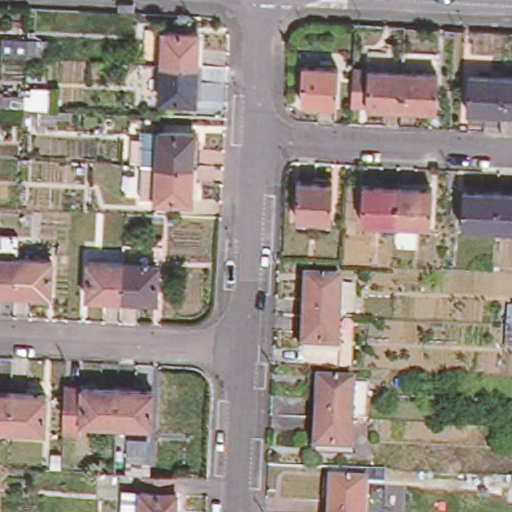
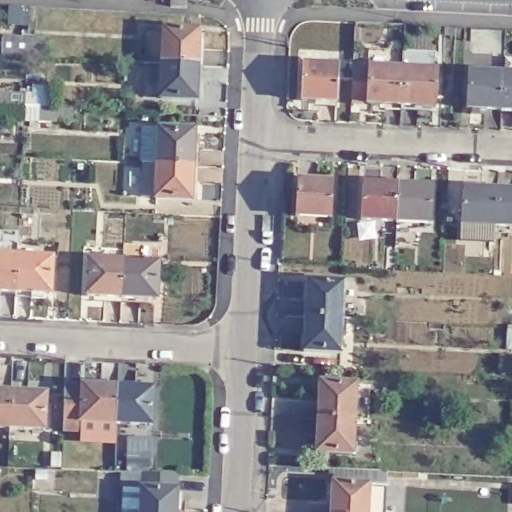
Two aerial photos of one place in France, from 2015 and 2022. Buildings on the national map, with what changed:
unchanged [(201,27),(199,61),(163,60),(166,24),(201,27)]
unchanged [(48,41),(47,57),(29,55),(29,40),(48,41)]
unchanged [(199,61),(197,96),(162,95),(163,60),(199,61)]
unchanged [(335,63),(333,99),(298,96),(300,61),(335,63)]
unchanged [(400,66),(435,68),(433,104),(398,102),(363,100),(366,64),(400,66)]
unchanged [(465,70),(499,72),(497,107),(463,105),(465,70)]
unchanged [(497,107),(499,72),(512,73),(512,108),(497,107)]
unchanged [(40,122),(26,122),(2,120),(4,107),(3,95),(27,96),(26,108),(26,109),(39,109),(40,122)]
unchanged [(166,197),(150,197),(152,164),(155,131),(170,132),(170,130),(206,131),(204,166),(202,201),(166,199),(166,197)]
unchanged [(334,183),(332,219),(296,216),(299,181),(334,183)]
unchanged [(363,220),(365,184),(399,187),(397,221),(363,220)]
unchanged [(464,185),(499,186),(497,221),(463,220),(464,185)]
unchanged [(497,221),(499,186),(512,188),(512,223),(497,221)]
unchanged [(397,221),(399,187),(433,189),(432,223),(397,221)]
unchanged [(20,228),(19,253),(53,255),(51,290),(17,288),(0,287),(0,228),(20,228)]
unchanged [(123,298),(88,297),(90,261),(125,263),(123,298)]
unchanged [(159,265),(158,300),(123,298),(125,263),(159,265)]
unchanged [(345,284),(343,319),(308,317),(310,281),(345,284)]
unchanged [(342,353),(306,351),(308,317),(343,319),(342,353)]
unchanged [(506,328),(512,328),(512,350),(505,349),(506,328)]
unchanged [(320,452),(321,418),(323,382),(357,384),(372,385),(370,420),(355,419),(354,455),(320,452)]
unchanged [(47,385),(67,386),(83,387),(119,389),(117,423),(82,421),(81,430),(65,430),(45,429),(11,428),(12,394),(47,395),(47,385)]
unchanged [(119,389),(153,391),(151,424),(117,423),(119,389)]
unchanged [(0,428),(0,393),(12,394),(11,428),(0,428)]
unchanged [(143,474),(178,476),(177,493),(176,512),(141,512),(142,491),(143,474)]
unchanged [(327,493),(335,494),(334,483),(328,483),(329,478),(388,481),(387,496),(369,496),(368,512),(333,512),(326,512),(327,493)]

